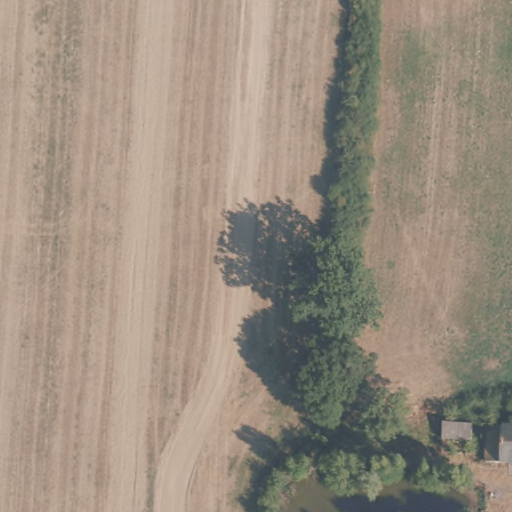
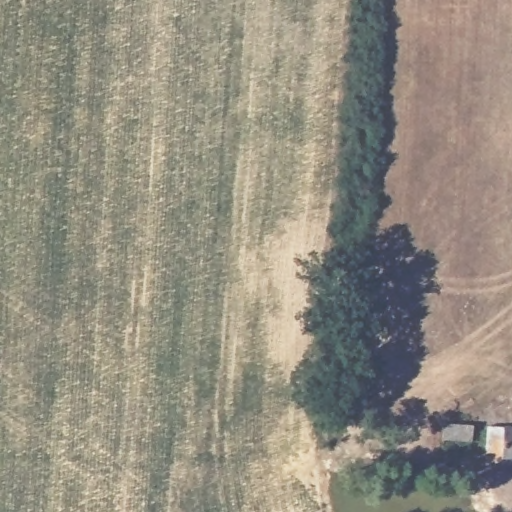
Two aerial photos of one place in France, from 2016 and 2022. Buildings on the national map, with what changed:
unchanged [(490,427),(512,428),(512,469),(489,467),(490,427)]

